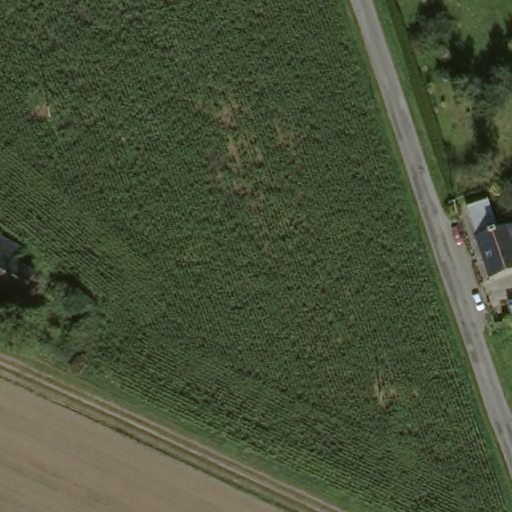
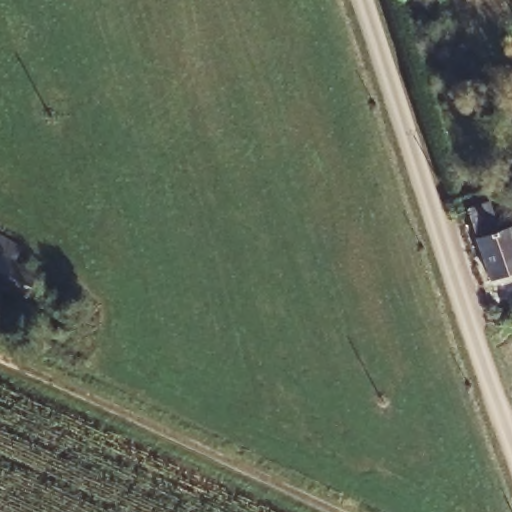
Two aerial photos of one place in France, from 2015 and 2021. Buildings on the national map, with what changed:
unchanged [(489,204),(499,234),(512,230),(512,274),(489,282),(476,245),(468,215),(469,211),(489,204)]
unchanged [(9,269),(27,279),(15,300),(0,293),(0,240),(19,250),(9,269)]

